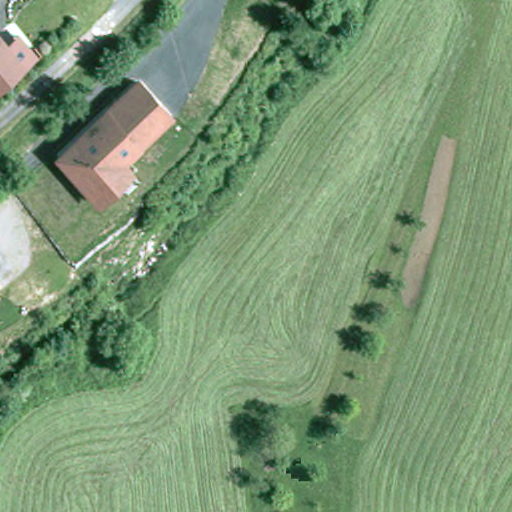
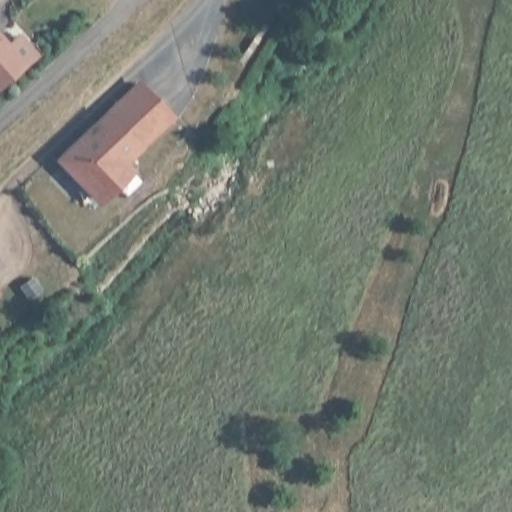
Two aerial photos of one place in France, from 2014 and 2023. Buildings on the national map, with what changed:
unchanged [(5,79),(0,83),(0,73),(5,79)]
unchanged [(95,197),(78,214),(72,208),(43,176),(123,101),(149,129),(154,135),(104,179),(109,184),(95,197)]

